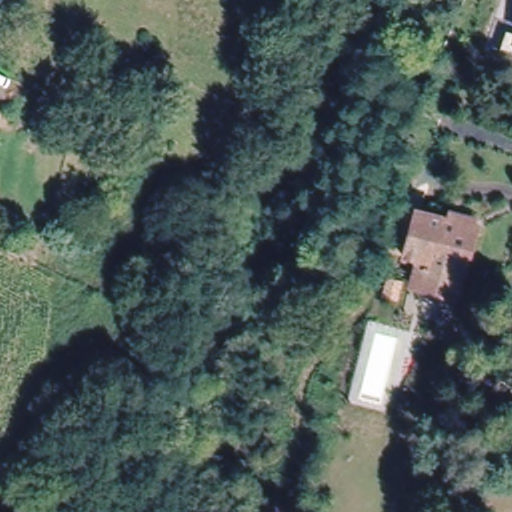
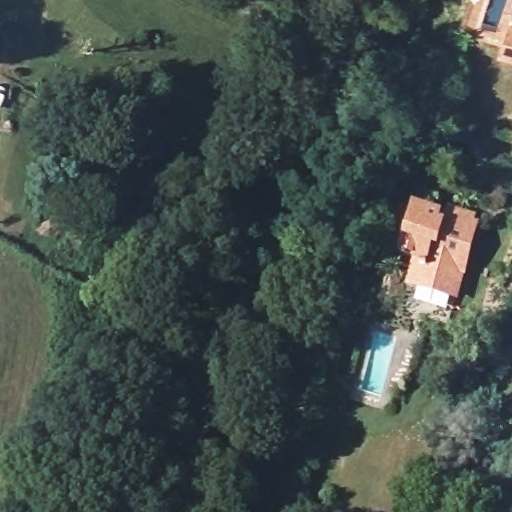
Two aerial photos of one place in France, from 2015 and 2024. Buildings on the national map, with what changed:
unchanged [(508,44),(512,31),(512,45),(508,44)]
unchanged [(429,109),(424,124),(412,120),(416,105),(429,109)]
unchanged [(416,260),(403,256),(415,214),(446,222),(449,215),(464,220),(471,221),(469,228),(476,230),(475,231),(471,231),(460,270),(463,270),(454,297),(419,287),(419,282),(409,280),(416,260)]

